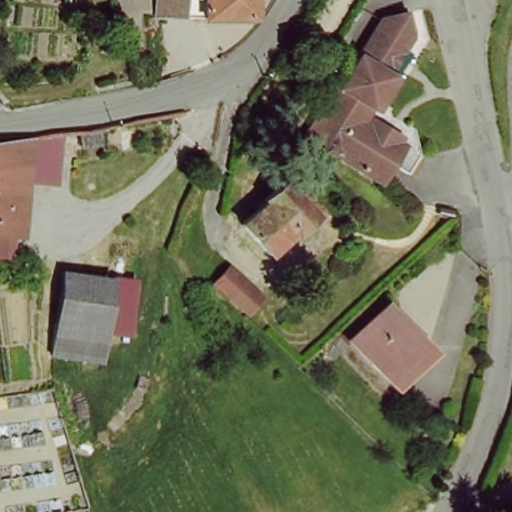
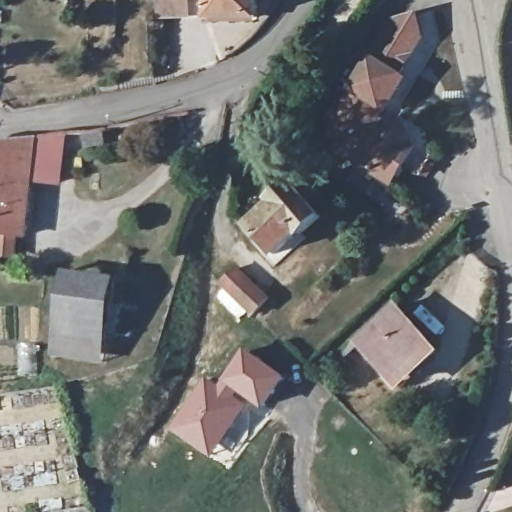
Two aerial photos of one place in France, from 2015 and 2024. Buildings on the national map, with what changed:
unchanged [(214,15),(162,14),(162,0),(214,0),(214,15)]
unchanged [(214,0),(264,0),(263,15),(214,15),(214,0)]
unchanged [(427,30),(404,68),(408,70),(380,115),(419,140),(408,158),(396,176),(337,139),(322,130),(340,101),(349,87),(350,87),(360,93),(364,86),(357,82),(400,13),(422,7),(427,30)]
unchanged [(67,127),(62,182),(35,180),(21,178),(25,132),(40,130),(67,127)]
unchanged [(105,130),(107,150),(92,152),(88,133),(105,130)]
unchanged [(25,132),(21,178),(35,180),(30,230),(27,230),(0,227),(0,136),(25,132)]
unchanged [(294,177),(324,210),(304,229),(302,226),(278,250),(251,221),(276,198),(273,195),(294,177)]
unchanged [(127,339),(107,337),(102,363),(47,355),(60,269),(134,282),(127,339)]
unchanged [(230,272),(263,303),(248,318),(215,287),(230,272)]
unchanged [(396,310),(437,353),(417,371),(422,376),(404,395),(358,346),(396,310)]
new [(266,411),(239,392),(235,397),(249,406),(212,460),(169,430),(206,376),(219,386),(224,382),(246,349),(289,378),(266,411)]

